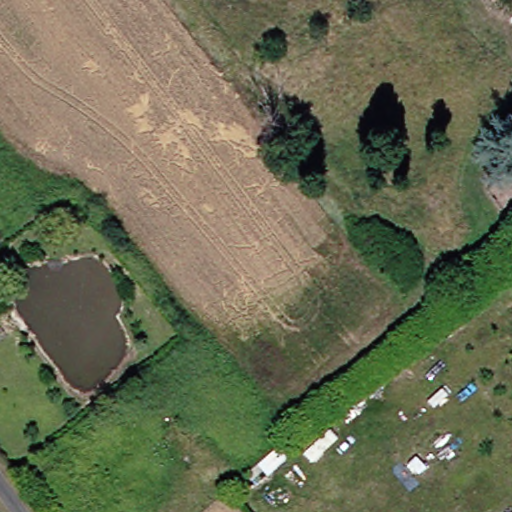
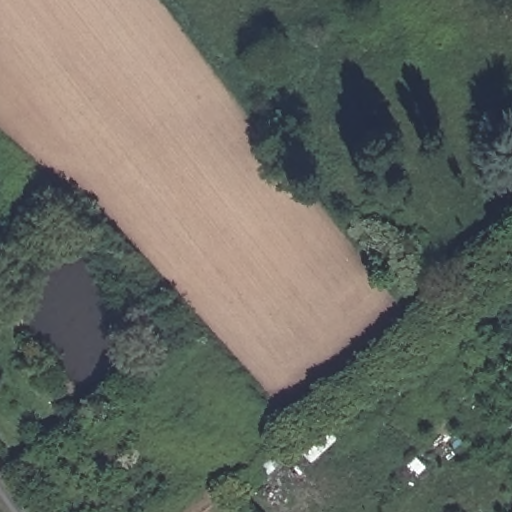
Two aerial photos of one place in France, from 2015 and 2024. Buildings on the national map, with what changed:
[]

